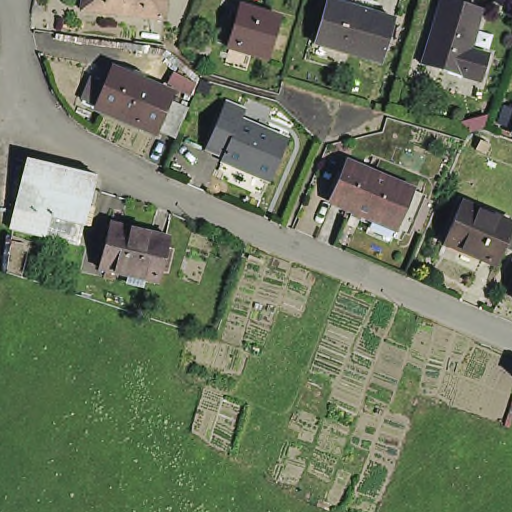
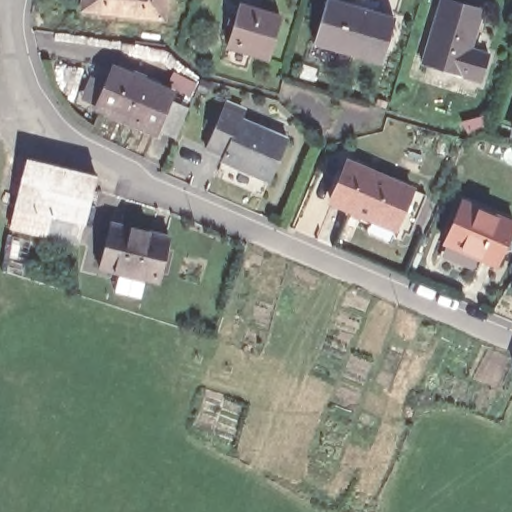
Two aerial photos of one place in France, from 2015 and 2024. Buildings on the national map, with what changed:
unchanged [(77,15),(79,0),(162,0),(160,24),(77,15)]
unchanged [(385,19),(372,63),(305,43),(317,0),(319,0),(385,19)]
unchanged [(420,60),(437,2),(477,14),(465,54),(485,59),(476,87),(439,75),(417,69),(420,60)]
unchanged [(264,64),(247,59),(226,52),(225,52),(223,51),(235,10),(276,22),(264,64)]
unchanged [(85,107),(86,104),(73,99),(81,78),(95,83),(102,67),(106,69),(108,64),(136,75),(135,81),(164,93),(160,101),(178,109),(167,136),(149,129),(147,133),(85,107)]
unchanged [(504,106),(512,109),(512,127),(498,123),(504,106)]
unchanged [(265,181),(218,161),(220,156),(202,149),(220,108),(237,116),(236,119),(282,139),(265,181)]
unchanged [(486,116),(487,116),(483,128),(482,128),(474,131),(468,133),(462,122),(486,116)]
unchanged [(485,153),(475,149),(481,135),(491,139),(485,153)]
unchanged [(95,174),(86,228),(53,227),(48,242),(12,240),(23,161),(95,174)]
unchanged [(395,235),(380,229),(316,202),(333,162),(397,189),(412,195),(395,235)]
unchanged [(495,248),(488,265),(473,259),(435,242),(451,201),(505,224),(503,230),(507,232),(500,250),(495,248)]
unchanged [(120,280),(90,273),(97,242),(100,228),(110,230),(160,242),(150,287),(135,284),(134,291),(117,287),(120,280)]
unchanged [(512,293),(512,308),(506,305),(512,293)]

